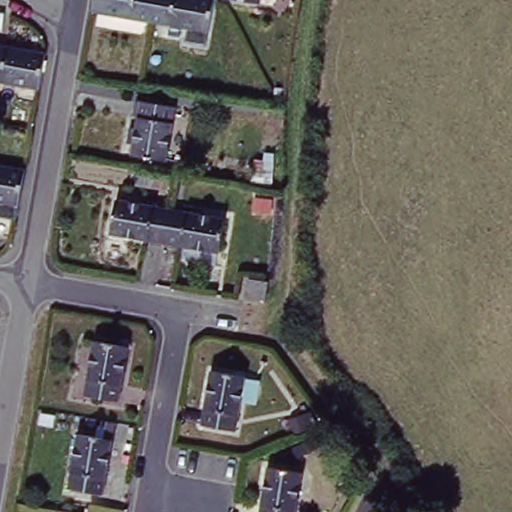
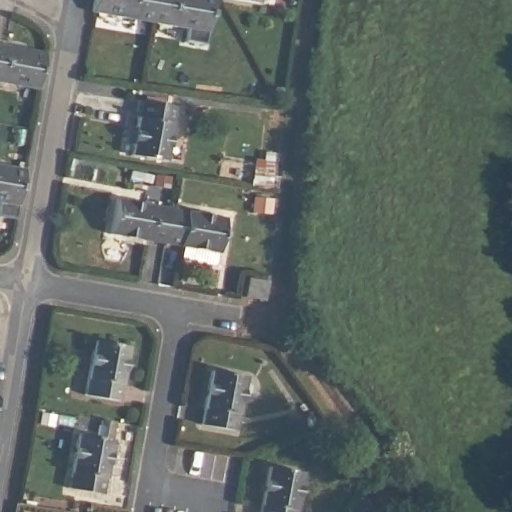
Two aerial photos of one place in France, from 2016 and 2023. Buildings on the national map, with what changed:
unchanged [(210,0),(203,45),(182,41),(183,32),(109,18),(110,14),(88,10),(89,0),(210,0)]
unchanged [(220,0),(253,0),(252,6),(220,0)]
unchanged [(22,85),(20,89),(0,85),(0,47),(44,55),(38,88),(22,85)]
unchanged [(173,105),(163,159),(129,154),(139,99),(173,105)]
unchanged [(16,217),(0,213),(0,205),(0,167),(24,171),(16,217)]
unchanged [(158,246),(106,237),(113,202),(164,211),(158,246)]
unchanged [(222,221),(216,256),(158,246),(164,211),(222,221)]
unchanged [(246,296),(251,277),(269,281),(265,300),(246,296)]
unchanged [(125,346),(116,399),(80,394),(89,341),(125,346)]
unchanged [(208,372),(241,376),(232,432),(198,427),(208,372)]
unchanged [(108,446),(99,500),(63,494),(73,439),(108,446)]
unchanged [(265,468),(299,474),(293,512),(257,512),(265,468)]

